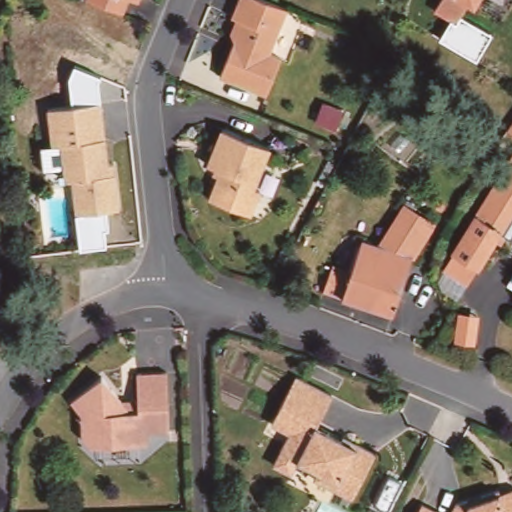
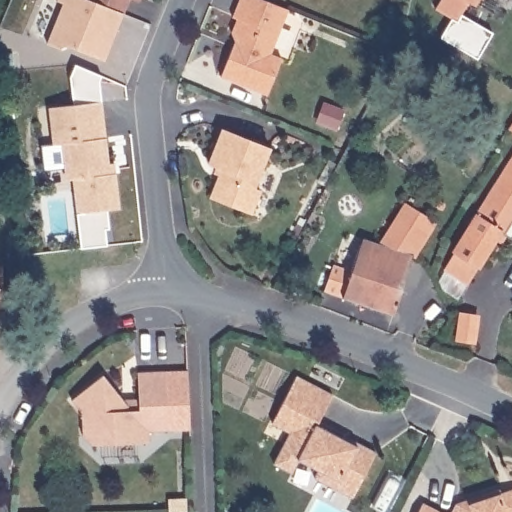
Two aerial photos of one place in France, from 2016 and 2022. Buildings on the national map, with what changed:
new [(61,4),(55,1),(56,0),(88,0),(92,1),(122,13),(104,62),(66,45),(60,48),(45,43),(61,4)]
unchanged [(93,0),(143,0),(142,3),(137,1),(130,16),(92,1),(93,0)]
unchanged [(286,12),(268,55),(278,59),(265,95),(220,76),(232,46),(229,32),(233,22),(230,18),(237,0),(258,0),(286,12)]
unchanged [(476,7),(469,3),(458,24),(436,11),(441,0),(479,0),(476,7)]
unchanged [(101,77),(99,82),(102,101),(72,103),(68,76),(73,65),(101,77)]
unchanged [(121,209),(77,214),(74,179),(67,180),(65,168),(62,143),(54,144),(49,106),(75,103),(102,101),(104,117),(110,163),(115,163),(117,173),(121,209)]
unchanged [(224,130),(269,148),(255,184),(262,188),(251,212),(217,197),(225,176),(219,172),(222,165),(212,160),(224,130)]
unchanged [(501,245),(493,240),(467,282),(444,267),(487,198),(488,199),(502,175),(512,157),(512,228),(501,245)]
unchanged [(334,264),(351,269),(362,236),(382,242),(404,202),(427,216),(425,223),(431,226),(425,235),(415,257),(396,309),(327,287),(334,264)]
unchanged [(102,373),(129,403),(140,394),(140,368),(167,366),(167,425),(147,426),(148,438),(88,440),(85,436),(85,411),(74,397),(102,373)]
unchanged [(271,460),(278,447),(287,430),(270,420),(296,373),(331,393),(315,423),(341,437),(342,434),(375,450),(351,495),(312,475),(316,467),(297,457),(289,470),(271,460)]
new [(410,426),(427,435),(407,472),(391,463),(410,426)]
unchanged [(497,487),(499,493),(512,490),(512,512),(446,512),(452,499),(497,487)]
unchanged [(444,512),(415,512),(421,501),(444,512)]

